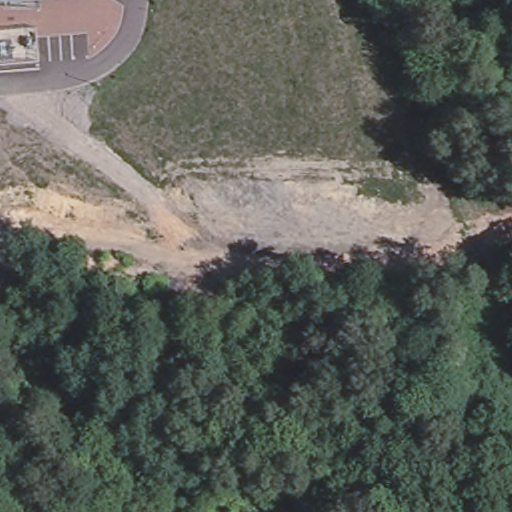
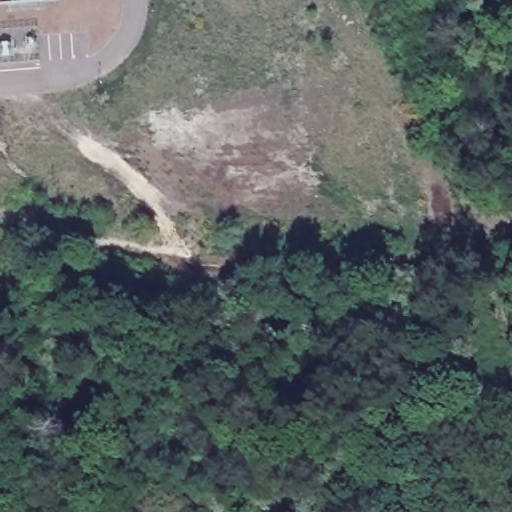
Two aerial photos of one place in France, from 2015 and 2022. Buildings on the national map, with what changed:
unchanged [(0,0),(78,0),(0,5),(0,0)]

